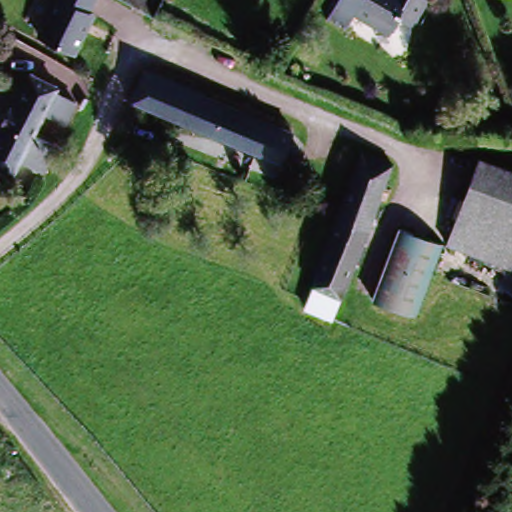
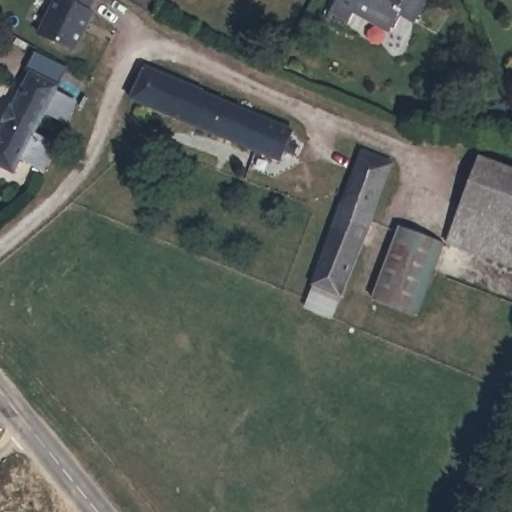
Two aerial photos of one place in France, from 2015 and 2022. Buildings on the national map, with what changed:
unchanged [(92,19),(98,22),(80,56),(75,59),(41,42),(62,0),(101,0),(92,19)]
unchanged [(411,20),(395,11),(385,30),(366,20),(364,22),(349,14),(341,29),(323,19),(333,0),(422,0),(411,20)]
unchanged [(286,156),(278,153),(273,164),(126,102),(139,74),(285,135),(281,144),(289,147),(286,156)]
unchanged [(54,90),(31,136),(52,147),(40,170),(19,160),(13,174),(0,167),(0,135),(5,125),(1,124),(9,110),(13,112),(30,77),(54,90)]
unchanged [(56,86),(81,104),(72,133),(43,117),(56,86)]
unchanged [(335,221),(356,165),(360,154),(388,164),(384,175),(394,179),(384,205),(374,201),(339,292),(336,300),(333,313),(306,302),(312,290),(310,289),(335,221)]
unchanged [(512,275),(443,250),(474,163),(512,177),(512,275)]
unchanged [(394,232),(439,249),(428,281),(414,320),(366,303),(394,232)]

